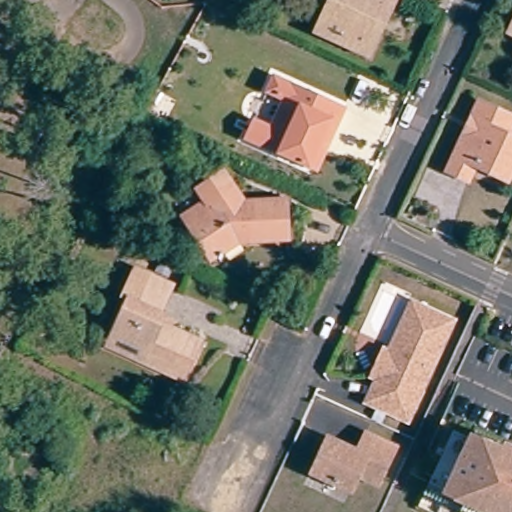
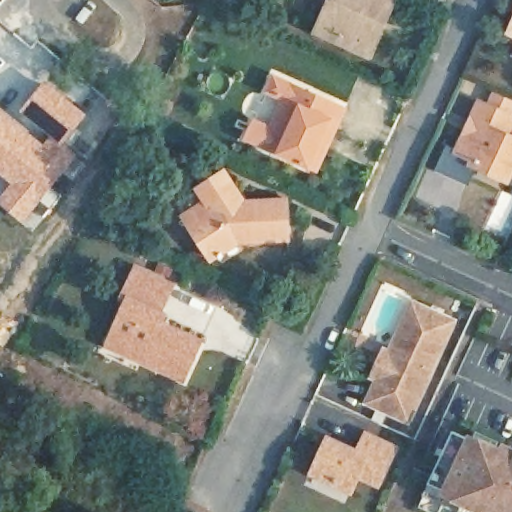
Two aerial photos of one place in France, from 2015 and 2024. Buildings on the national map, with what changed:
unchanged [(315,27),(327,2),(332,3),(333,0),(387,0),(365,50),(357,46),(315,27)]
unchanged [(511,16),(512,12),(512,17),(511,16)]
unchanged [(502,38),(512,17),(512,43),(502,38)]
new [(44,142),(50,134),(22,111),(31,98),(46,80),(89,115),(74,134),(65,145),(80,156),(52,188),(61,196),(47,209),(42,205),(36,210),(44,217),(31,232),(0,206),(0,195),(9,184),(0,177),(0,107),(2,109),(44,142)]
unchanged [(323,175),(316,172),(270,151),(252,143),(261,125),(278,132),(291,104),(274,96),(281,81),(345,110),(352,113),(323,175)]
unchanged [(441,171),(450,151),(458,132),(463,121),(472,103),(505,119),(497,136),(512,142),(512,174),(503,170),(500,179),(467,164),(460,180),(441,171)]
unchanged [(227,239),(210,249),(200,254),(182,221),(206,202),(196,182),(224,166),(231,180),(237,192),(265,194),(281,196),(281,205),(280,226),(278,244),(262,242),(227,239)]
unchanged [(177,380),(139,362),(142,355),(111,338),(127,302),(120,298),(132,272),(167,287),(156,314),(160,317),(157,324),(195,342),(177,380)]
unchanged [(371,373),(382,347),(387,348),(410,300),(449,317),(404,416),(365,398),(374,378),(376,375),(371,373)]
unchanged [(416,497),(422,485),(426,474),(438,447),(450,422),(478,435),(482,427),(496,432),(492,441),(501,445),(504,440),(512,443),(512,512),(447,512),(416,497)]
unchanged [(375,481),(355,472),(348,486),(312,469),(327,437),(355,450),(364,431),(392,443),(375,481)]

